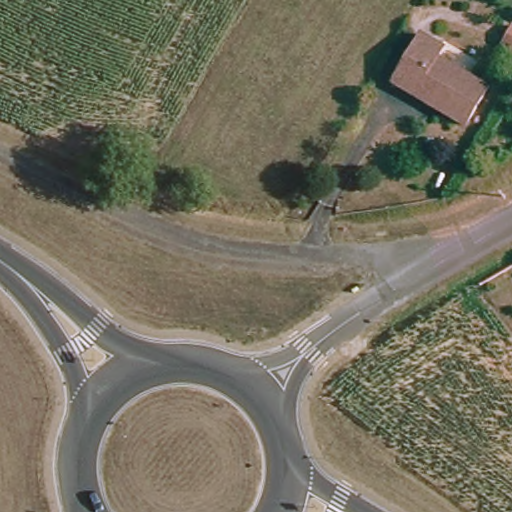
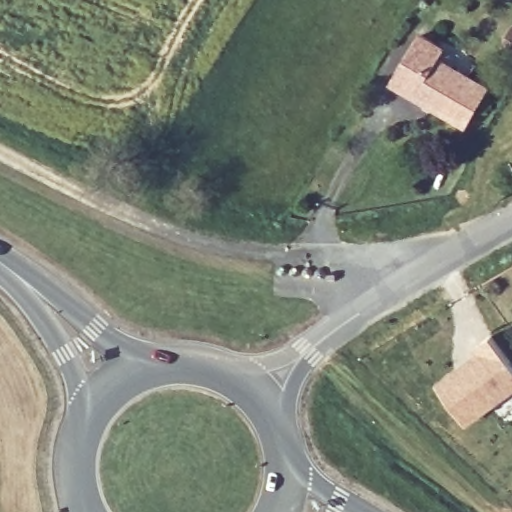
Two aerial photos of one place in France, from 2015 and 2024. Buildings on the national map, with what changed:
unchanged [(512,25),(512,49),(499,42),(509,23),(512,25)]
unchanged [(447,47),(441,58),(489,86),(466,125),(394,81),(422,33),(447,47)]
new [(459,371),(460,373),(484,355),(477,346),(492,335),(512,361),(512,390),(509,392),(507,390),(494,399),(496,402),(467,423),(439,384),(459,371)]

